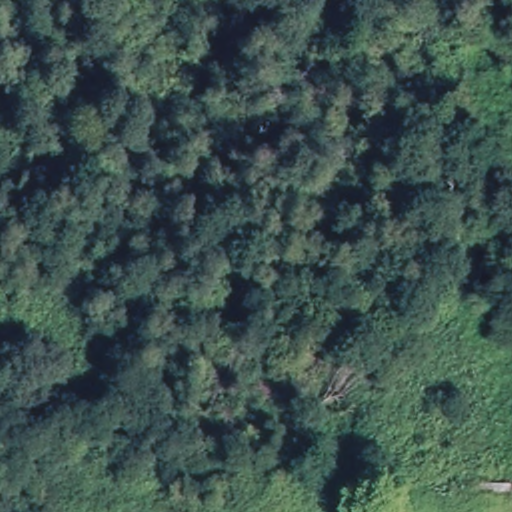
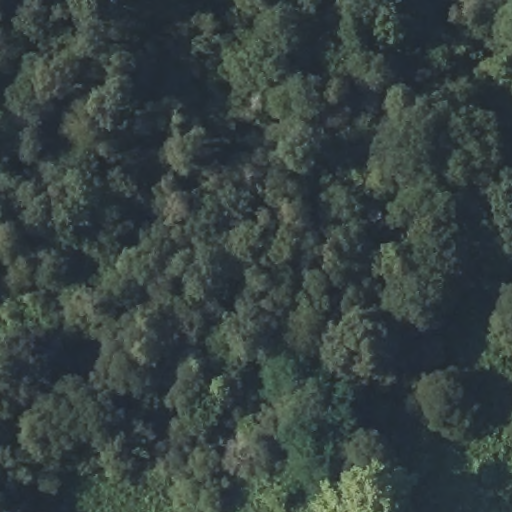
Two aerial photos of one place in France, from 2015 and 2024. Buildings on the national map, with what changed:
[]

